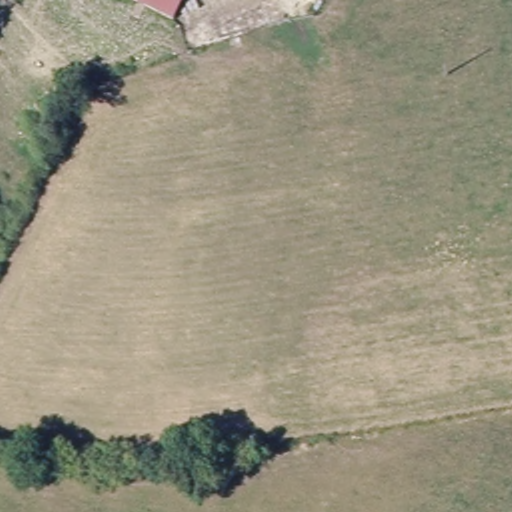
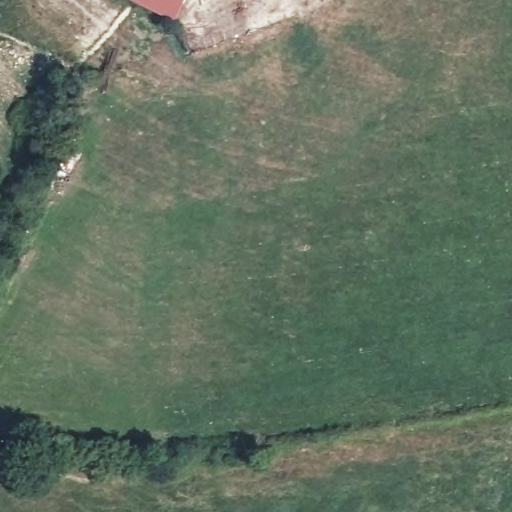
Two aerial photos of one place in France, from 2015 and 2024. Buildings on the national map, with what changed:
unchanged [(130,0),(191,0),(179,26),(130,0)]

